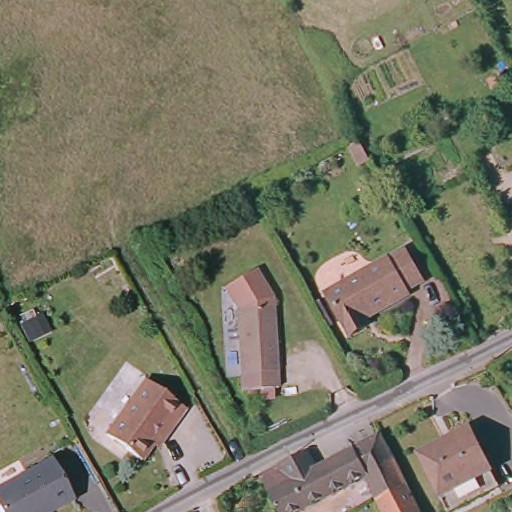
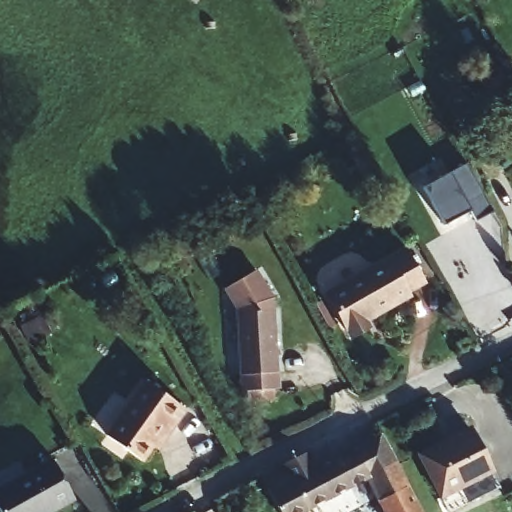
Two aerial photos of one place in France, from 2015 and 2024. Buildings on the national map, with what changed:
new [(356,144),(366,162),(359,167),(349,149),(356,144)]
new [(490,213),(472,223),(467,213),(440,227),(419,189),(463,165),(490,213)]
unchanged [(418,283),(401,293),(403,297),(359,320),(363,327),(345,337),(322,295),(399,250),(418,283)]
unchanged [(269,296),(271,295),(272,298),(270,298),(277,370),(241,374),(236,310),(225,290),(223,286),(254,269),(257,274),(269,296)]
unchanged [(145,382),(184,412),(173,426),(169,423),(141,460),(105,433),(145,382)]
unchanged [(492,466),(442,492),(419,447),(471,423),(492,466)]
unchanged [(297,512),(281,512),(270,489),(263,472),(272,468),(309,450),(317,467),(381,433),(419,512),(385,512),(368,476),(297,512)]
unchanged [(50,512),(0,512),(0,489),(53,461),(73,500),(50,512)]

